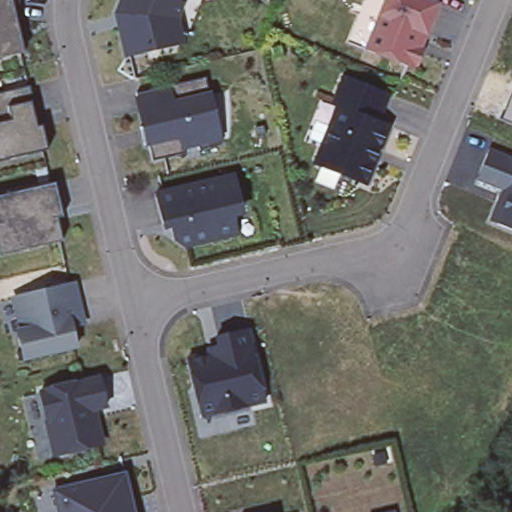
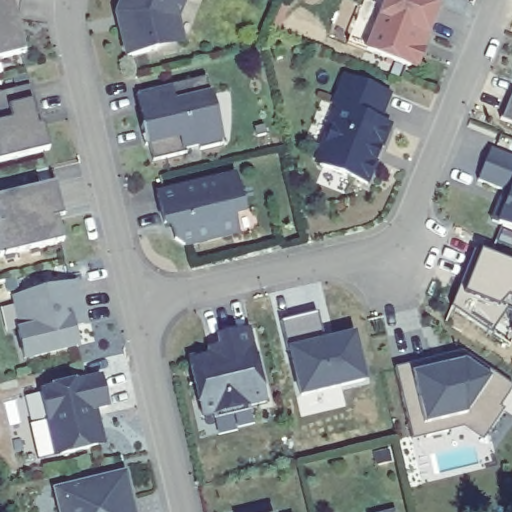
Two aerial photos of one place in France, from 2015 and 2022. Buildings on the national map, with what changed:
unchanged [(0,0),(20,0),(18,18),(17,18),(25,52),(2,57),(0,58),(0,53),(0,0)]
unchanged [(156,49),(127,56),(120,27),(117,13),(122,0),(184,0),(177,17),(183,43),(156,49)]
unchanged [(425,52),(420,64),(410,66),(368,50),(388,0),(429,0),(441,5),(429,34),(423,49),(425,52)]
unchanged [(392,95),(380,122),(392,126),(382,150),(378,148),(373,159),(378,161),(368,184),(322,165),(318,158),(340,106),(335,104),(347,76),(392,95)]
unchanged [(140,127),(147,126),(143,110),(141,110),(137,93),(206,77),(210,95),(213,110),(222,144),(200,150),(198,144),(185,148),(185,153),(152,160),(148,143),(145,144),(140,127)]
unchanged [(39,114),(37,114),(40,124),(45,123),(50,148),(0,160),(0,91),(32,84),(39,114)]
unchanged [(512,97),(512,123),(502,119),(512,97)]
unchanged [(500,224),(493,222),(505,192),(479,181),(493,147),(512,155),(512,230),(500,224)]
unchanged [(167,222),(160,223),(153,193),(217,178),(232,175),(235,188),(240,209),(230,212),(235,233),(182,245),(171,238),(168,226),(167,222)]
unchanged [(0,254),(0,194),(51,182),(57,181),(65,215),(59,216),(65,240),(0,254)]
new [(478,246),(512,258),(512,341),(510,343),(453,304),(478,246)]
unchanged [(74,330),(78,350),(25,362),(18,334),(25,333),(17,299),(74,286),(82,320),(84,328),(74,330)]
new [(318,314),(327,349),(337,347),(335,340),(355,336),(366,382),(302,397),(291,352),(288,352),(281,322),(318,314)]
unchanged [(195,383),(190,358),(222,350),(218,336),(250,329),(267,401),(250,405),(247,410),(237,412),(232,409),(217,413),(203,416),(195,383)]
new [(410,430),(396,369),(430,361),(463,353),(495,374),(512,386),(512,393),(502,408),(505,411),(490,433),(467,416),(445,422),(448,433),(427,438),(413,442),(410,430)]
unchanged [(46,390),(45,388),(83,379),(84,381),(102,377),(108,405),(91,409),(99,445),(61,454),(52,418),(48,419),(42,390),(46,390)]
unchanged [(135,512),(60,512),(55,489),(126,472),(135,512)]

